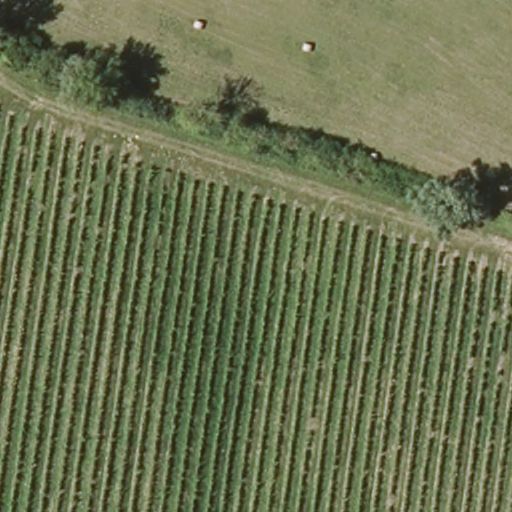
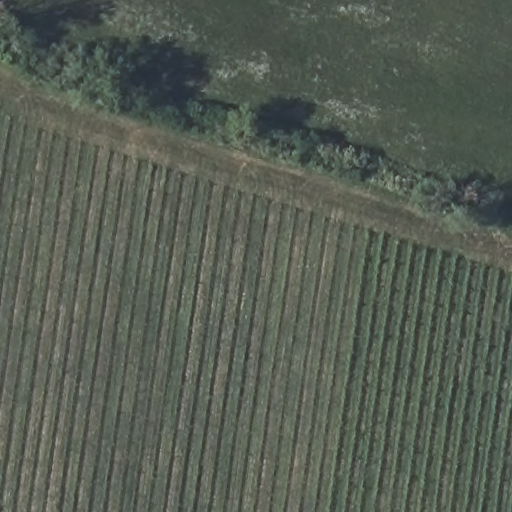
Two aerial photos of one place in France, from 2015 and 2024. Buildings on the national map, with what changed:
[]

